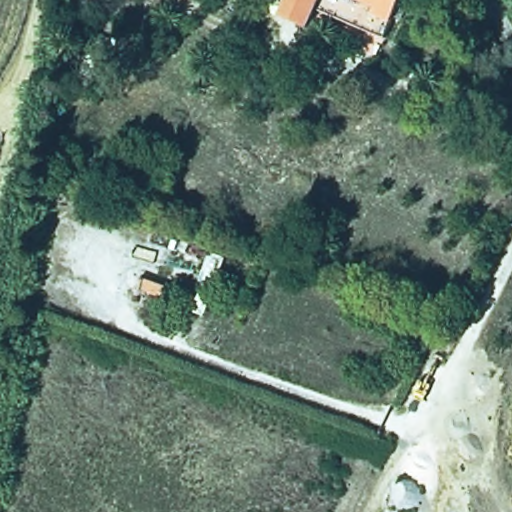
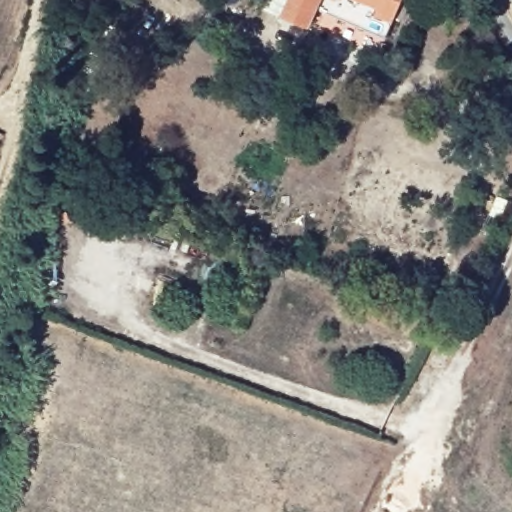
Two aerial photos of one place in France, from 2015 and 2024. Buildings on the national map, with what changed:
unchanged [(386,38),(317,9),(309,27),(281,15),(287,0),(402,0),(386,38)]

